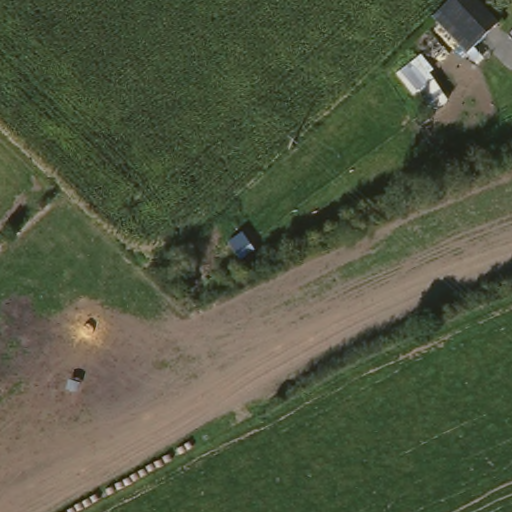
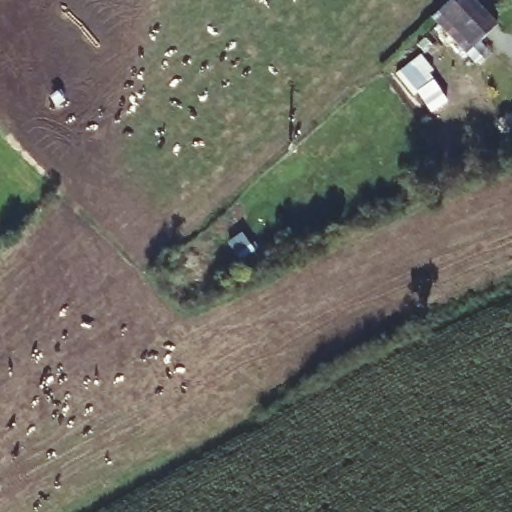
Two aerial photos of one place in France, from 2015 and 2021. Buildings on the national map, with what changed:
unchanged [(497,29),(466,57),(427,16),(440,4),(444,0),(471,0),(487,18),(497,29)]

